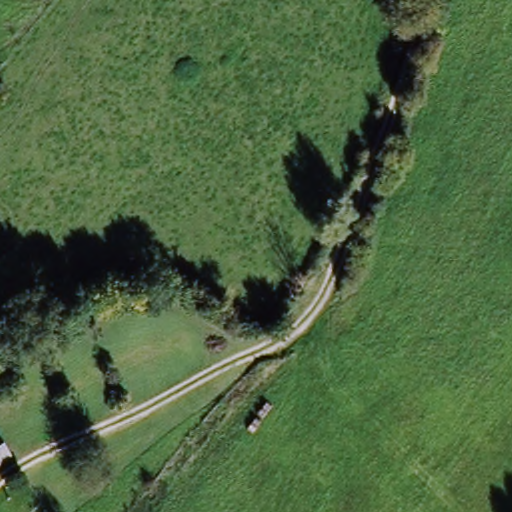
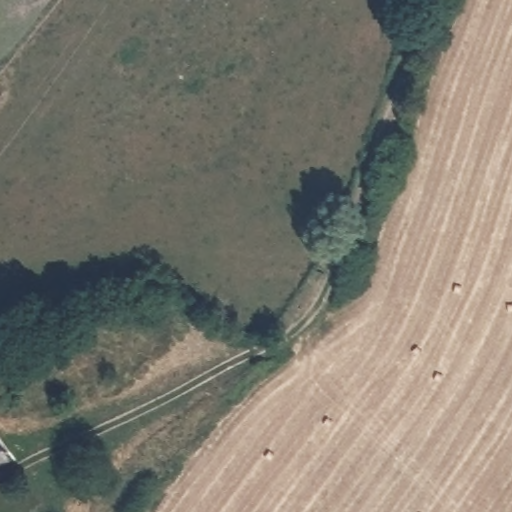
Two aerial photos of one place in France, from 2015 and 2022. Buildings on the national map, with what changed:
unchanged [(6,457),(0,462),(0,448),(6,457)]

